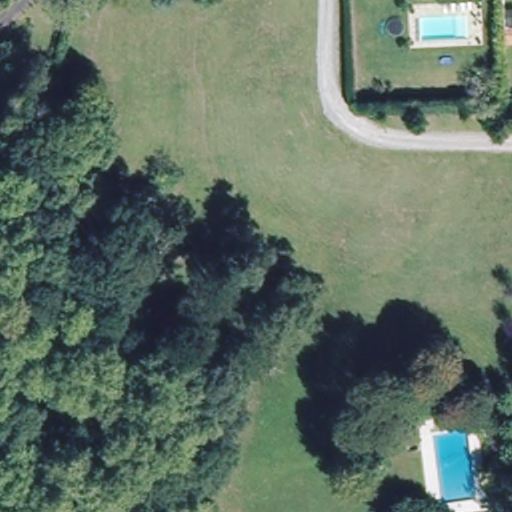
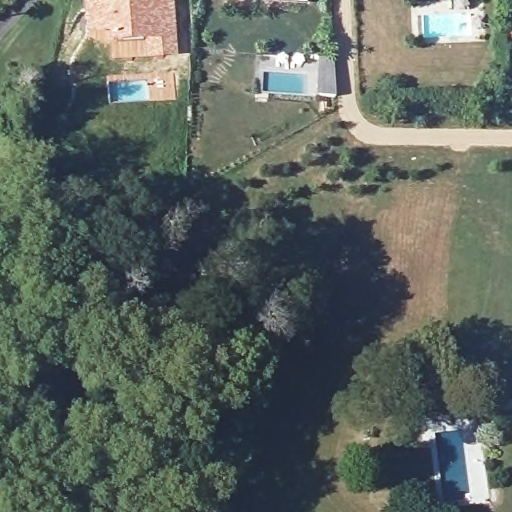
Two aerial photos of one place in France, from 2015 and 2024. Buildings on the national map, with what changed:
new [(177,57),(110,60),(109,44),(85,41),(81,0),(173,0),(177,57)]
new [(310,2),(274,0),(311,0),(310,2)]
unchanged [(512,11),(512,30),(511,30),(512,11)]
new [(315,60),(334,60),(335,97),(314,96),(315,60)]

